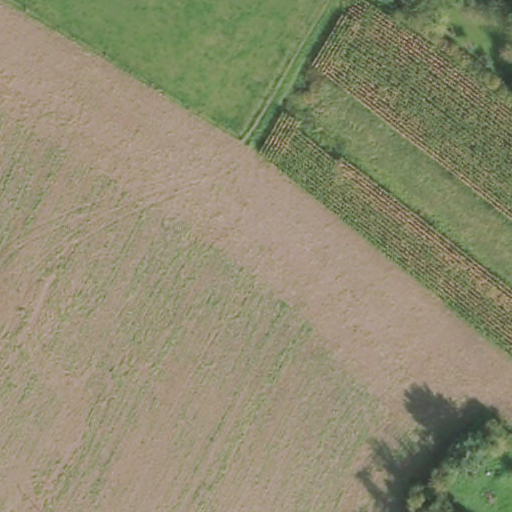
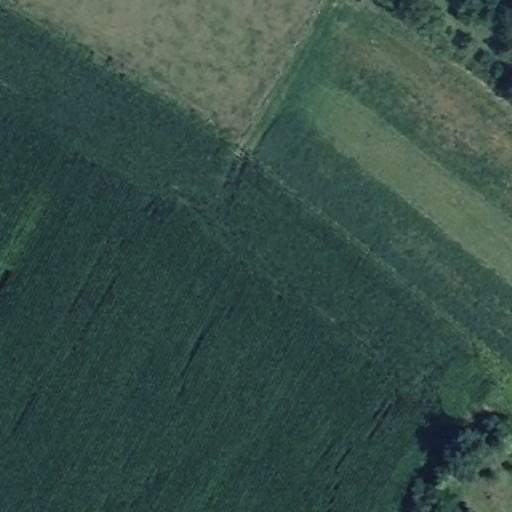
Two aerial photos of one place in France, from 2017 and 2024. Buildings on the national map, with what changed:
unchanged [(378,0),(389,0),(385,6),(378,0)]

